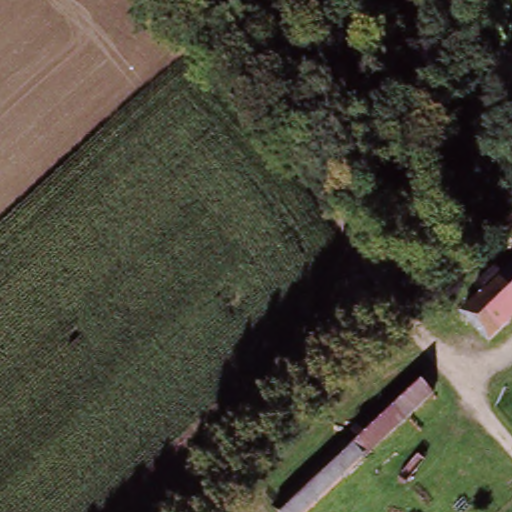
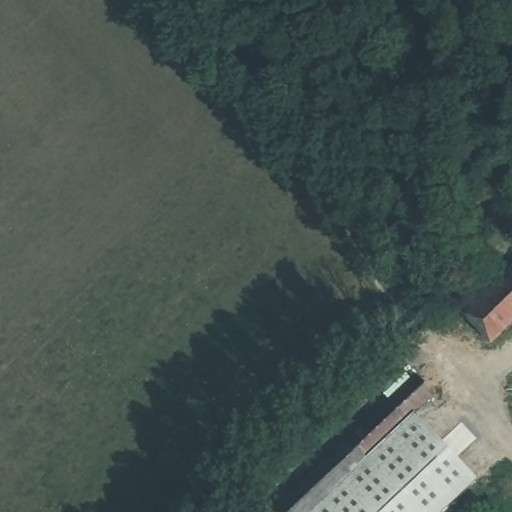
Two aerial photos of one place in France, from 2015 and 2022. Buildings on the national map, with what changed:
unchanged [(512,271),(512,287),(504,279),(512,271)]
unchanged [(465,316),(504,279),(512,287),(512,322),(490,343),(465,316)]
unchanged [(440,398),(317,512),(283,512),(273,500),(414,370),(440,398)]
new [(478,480),(443,512),(317,512),(420,417),(478,480)]

